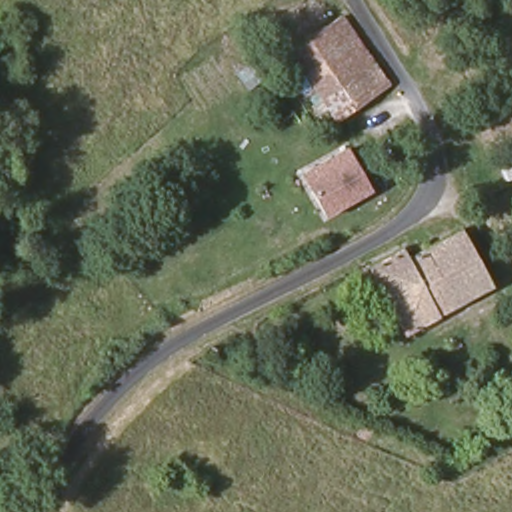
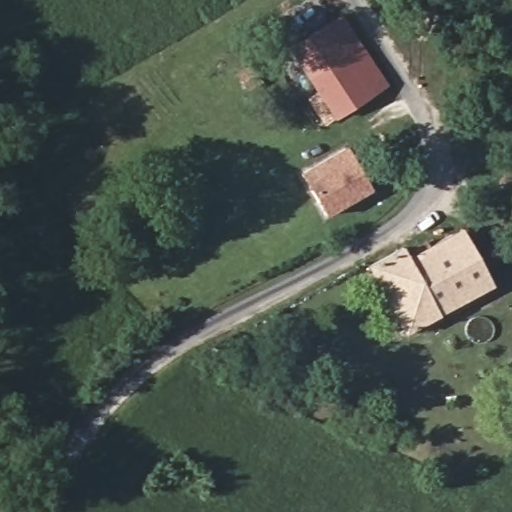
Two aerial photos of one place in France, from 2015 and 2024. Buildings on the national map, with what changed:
unchanged [(327,126),(312,101),(319,96),(294,54),(342,20),(386,86),(327,126)]
unchanged [(362,187),(322,211),(301,172),(342,148),(362,187)]
unchanged [(405,336),(371,268),(400,250),(404,255),(411,251),(415,256),(461,232),(492,290),(405,336)]

